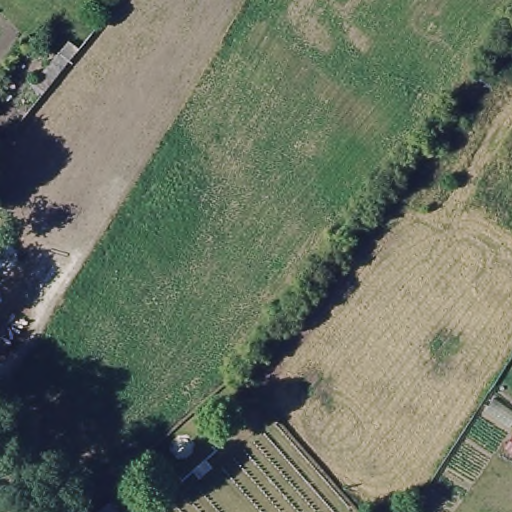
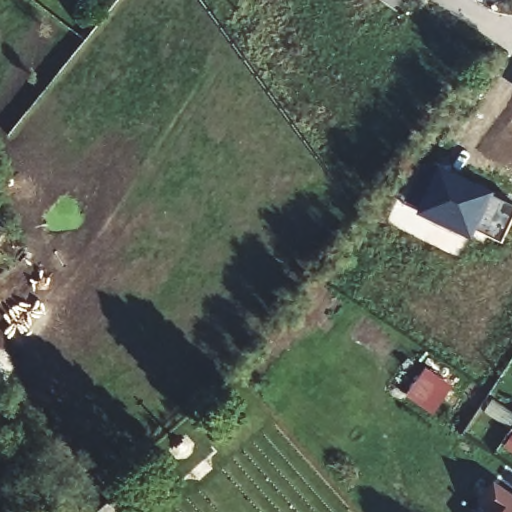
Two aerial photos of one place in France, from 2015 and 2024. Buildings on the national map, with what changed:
new [(495,195),(495,198),(512,207),(512,220),(501,244),(477,232),(472,242),(417,216),(440,169),(495,195)]
new [(493,484),(512,497),(512,512),(487,512),(478,506),(493,484)]
unchanged [(119,512),(100,512),(110,502),(119,512)]

